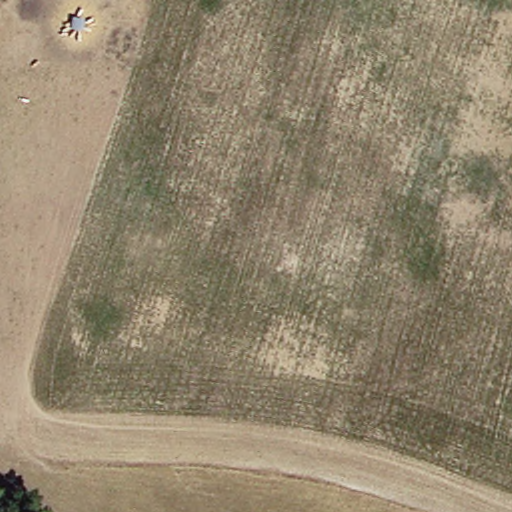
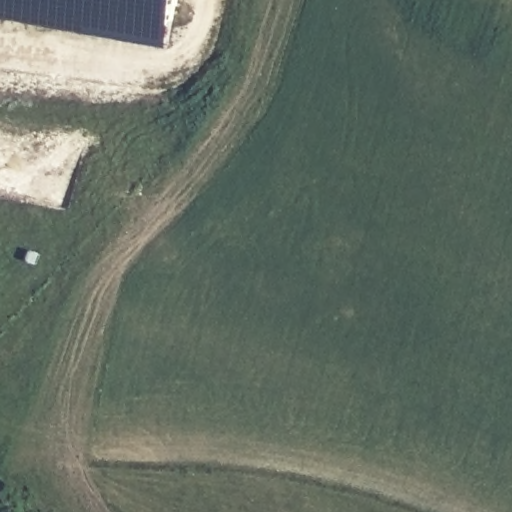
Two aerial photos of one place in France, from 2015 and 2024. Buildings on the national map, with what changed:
new [(169,47),(0,17),(0,0),(178,0),(169,47)]

